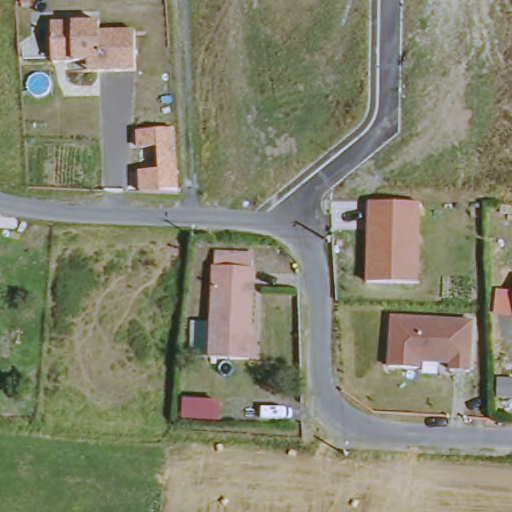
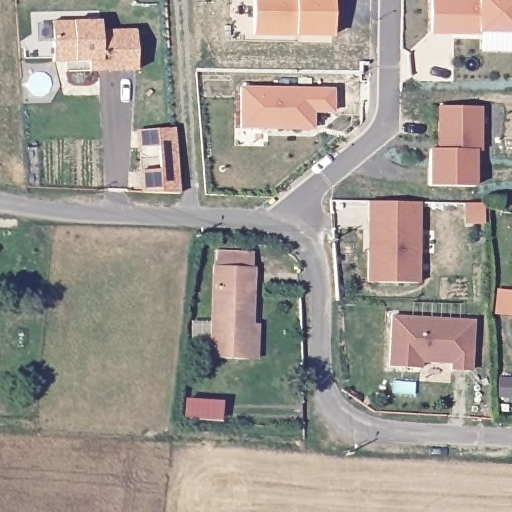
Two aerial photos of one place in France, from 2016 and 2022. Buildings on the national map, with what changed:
new [(246,0),(326,0),(325,36),(287,36),(287,32),(273,32),(273,35),(246,35),(246,0)]
new [(425,0),(511,0),(511,33),(474,32),(474,35),(425,34),(425,0)]
unchanged [(57,25),(106,23),(106,34),(141,32),(142,73),(95,74),(95,64),(59,65),(57,25)]
new [(234,89),(326,91),(325,113),(305,112),(305,130),(233,129),(234,89)]
new [(424,150),(435,151),(435,144),(431,144),(432,107),(474,107),(473,152),(468,152),(467,188),(423,187),(424,150)]
unchanged [(179,193),(140,193),(139,171),(159,170),(158,147),(138,149),(137,132),(176,129),(179,193)]
unchanged [(366,282),(367,202),(421,203),(420,282),(366,282)]
unchanged [(265,357),(258,357),(222,356),(221,265),(222,252),(261,252),(261,265),(260,321),(266,322),(265,357)]
unchanged [(450,372),(451,366),(423,365),(422,371),(389,367),(392,317),(475,323),(472,374),(450,372)]

